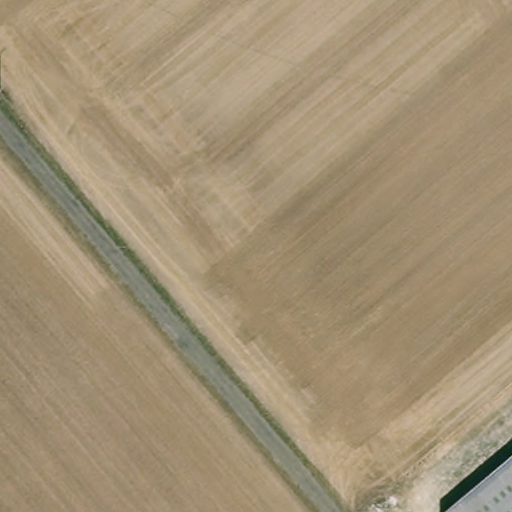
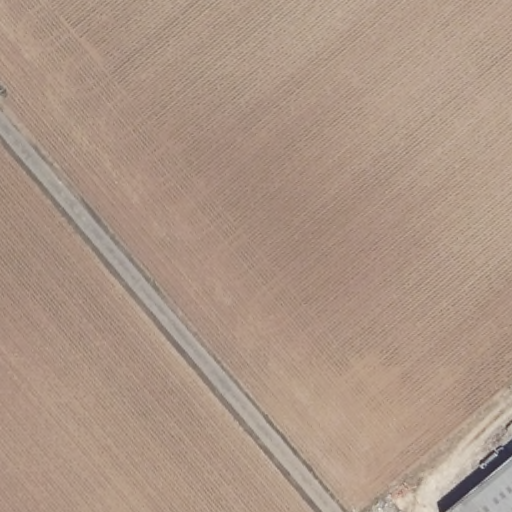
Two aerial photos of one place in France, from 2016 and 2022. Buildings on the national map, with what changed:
unchanged [(442,512),(512,453),(512,512),(442,512)]

